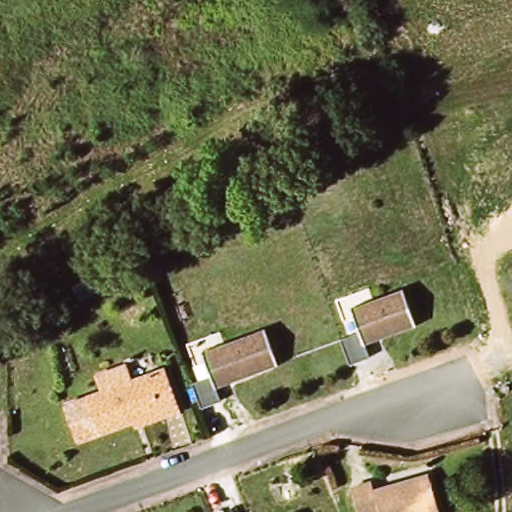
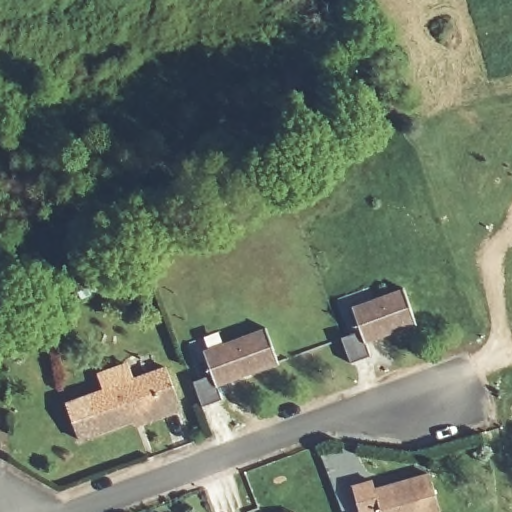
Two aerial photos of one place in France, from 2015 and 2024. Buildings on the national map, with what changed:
unchanged [(64,273),(92,256),(100,266),(72,283),(64,273)]
unchanged [(358,335),(348,311),(400,291),(416,327),(365,347),(370,359),(349,367),(340,342),(358,335)]
unchanged [(211,378),(201,352),(263,329),(279,366),(217,389),(223,403),(202,410),(192,385),(211,378)]
unchanged [(165,418),(162,410),(78,440),(64,405),(166,368),(183,411),(165,418)]
unchanged [(352,486),(370,480),(374,489),(428,474),(440,512),(359,512),(352,486)]

